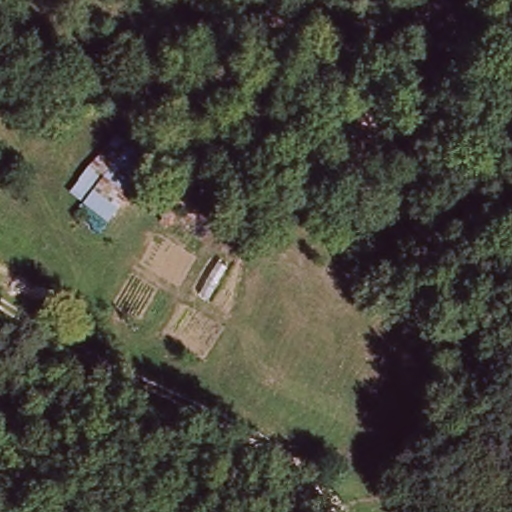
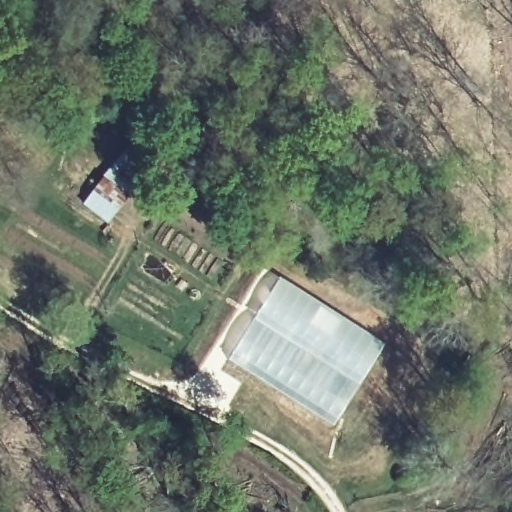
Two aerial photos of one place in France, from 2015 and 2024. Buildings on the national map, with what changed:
unchanged [(155,165),(119,204),(82,177),(122,133),(155,165)]
new [(278,277),(385,343),(332,427),(227,358),(278,277)]

